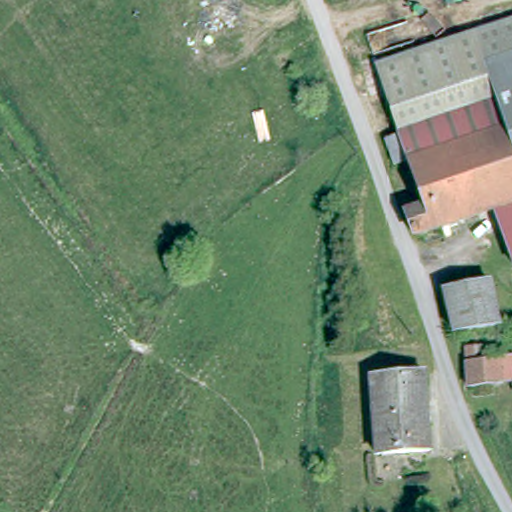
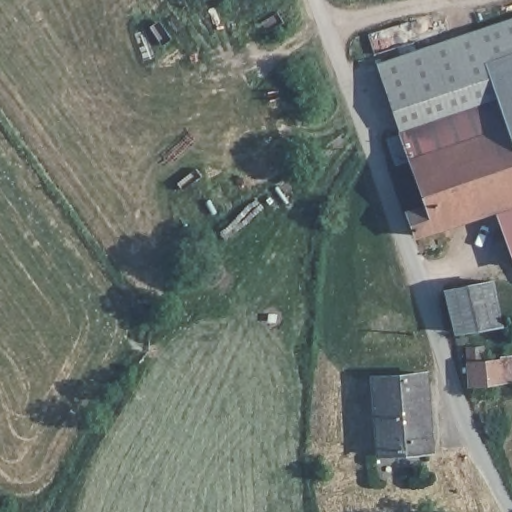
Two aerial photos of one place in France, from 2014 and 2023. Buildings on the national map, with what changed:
unchanged [(373,60),(512,14),(512,50),(484,59),(497,97),(397,131),(373,60)]
unchanged [(512,50),(512,143),(497,97),(484,59),(512,50)]
unchanged [(512,267),(494,210),(411,235),(404,210),(424,204),(410,159),(392,164),(386,143),(399,139),(397,131),(497,97),(512,143),(512,267)]
unchanged [(497,322),(451,332),(441,288),(488,277),(497,322)]
unchanged [(512,351),(512,381),(509,382),(471,390),(462,347),(480,343),(486,342),(489,362),(502,359),(501,353),(512,351)]
unchanged [(424,377),(429,451),(374,453),(374,433),(372,407),(371,377),(424,377)]

